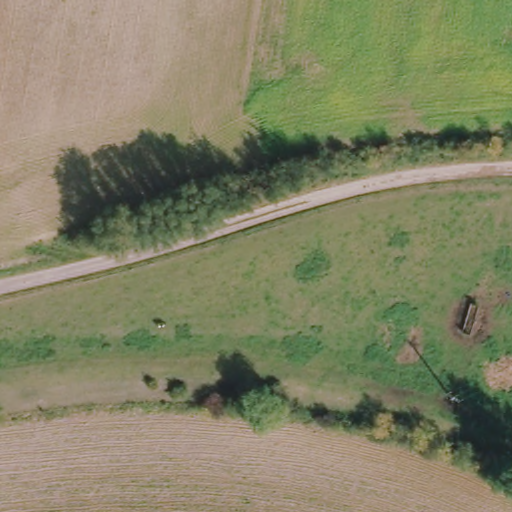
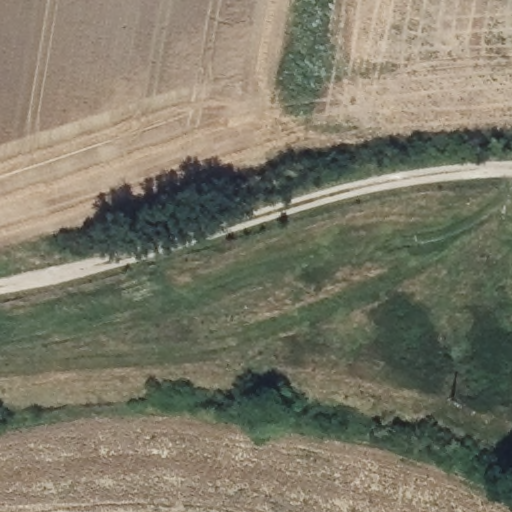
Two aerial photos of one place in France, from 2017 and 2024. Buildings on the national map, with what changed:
[]

